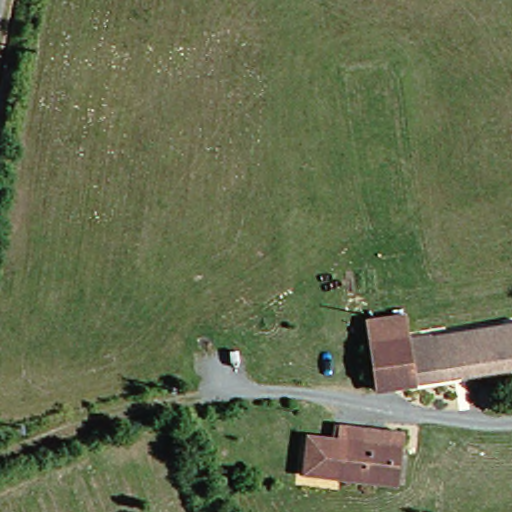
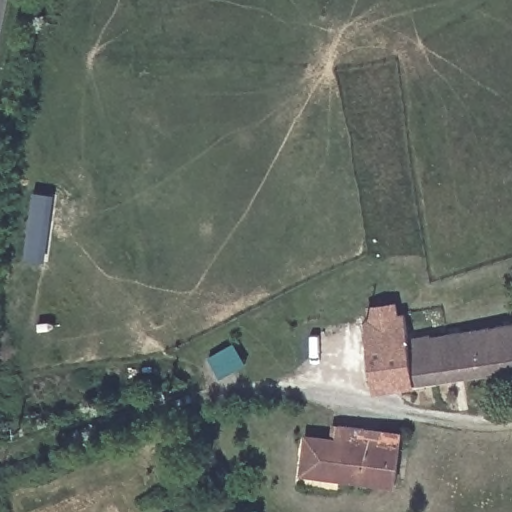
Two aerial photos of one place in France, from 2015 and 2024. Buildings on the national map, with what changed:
new [(49,233),(44,232),(40,261),(24,259),(33,192),(54,194),(49,233)]
unchanged [(397,393),(374,398),(366,352),(360,332),(379,329),(399,325),(402,345),(512,323),(512,372),(397,393)]
unchanged [(392,488),(296,478),(300,439),(324,441),(325,426),(396,435),(394,448),(392,488)]

